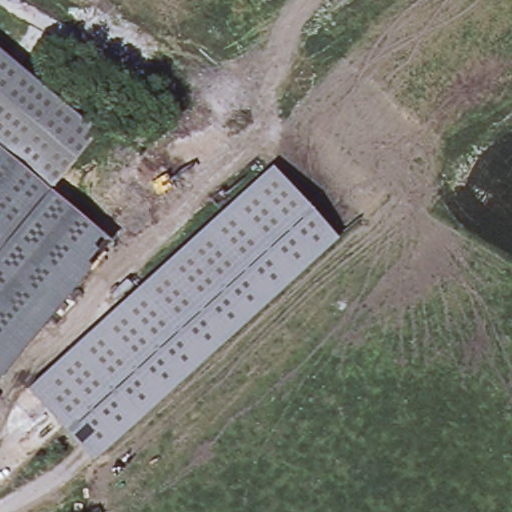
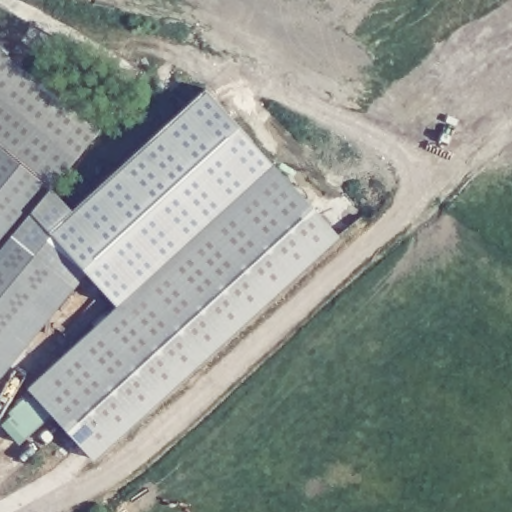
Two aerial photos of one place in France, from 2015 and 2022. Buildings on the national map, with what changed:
unchanged [(47,187),(70,204),(109,239),(87,268),(0,375),(0,50),(99,133),(47,187)]
new [(206,84),(275,158),(272,162),(117,304),(87,268),(109,239),(70,204),(206,84)]
unchanged [(29,386),(117,304),(272,162),(337,234),(201,360),(101,449),(92,457),(68,431),(29,386)]

